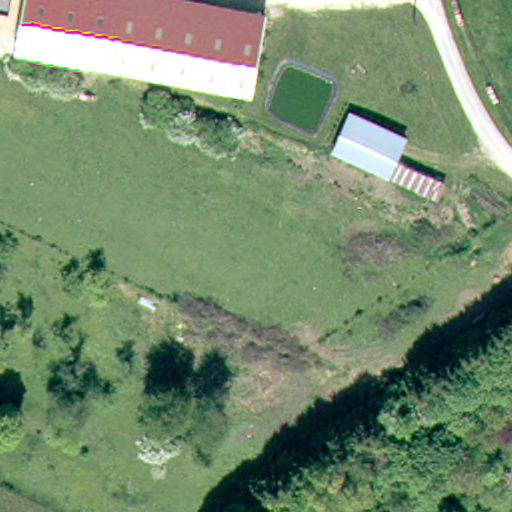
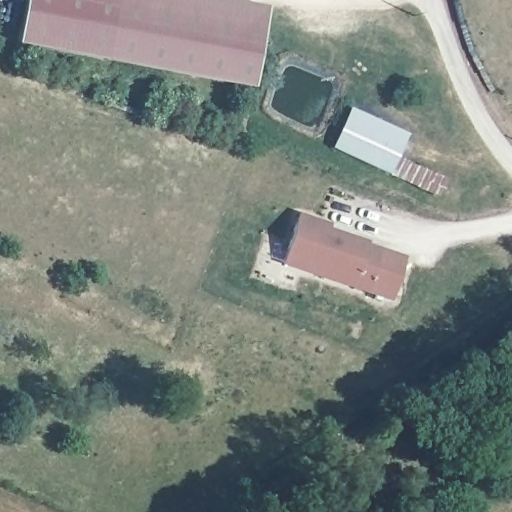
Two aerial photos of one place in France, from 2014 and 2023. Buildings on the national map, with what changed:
unchanged [(251,90),(12,47),(22,0),(226,0),(267,7),(251,90)]
unchanged [(436,198),(390,175),(335,148),(353,110),(409,138),(399,158),(445,180),(436,198)]
new [(328,227),(367,241),(367,245),(404,256),(390,302),(280,266),(297,212),(329,224),(328,227)]

